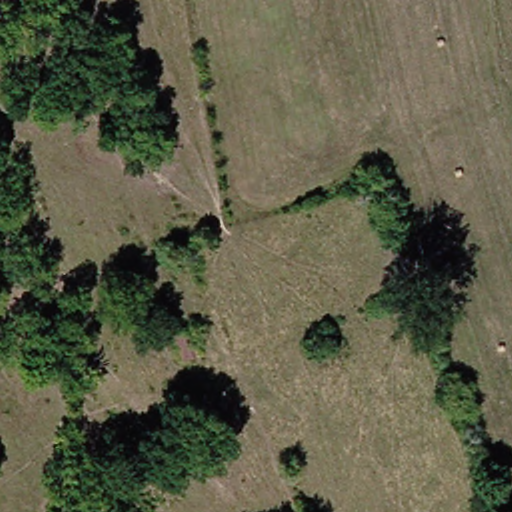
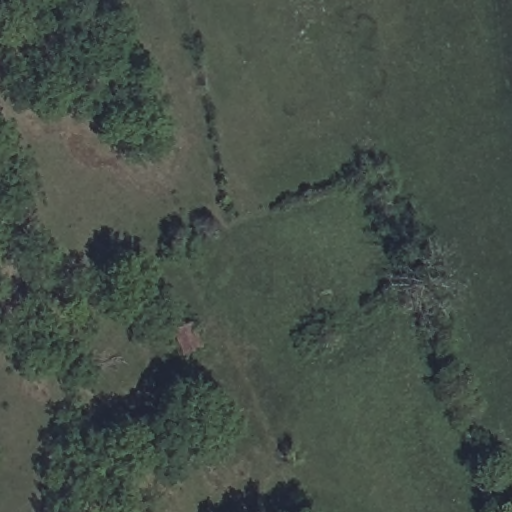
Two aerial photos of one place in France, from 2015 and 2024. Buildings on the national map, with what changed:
unchanged [(191,325),(201,347),(183,355),(173,333),(191,325)]

